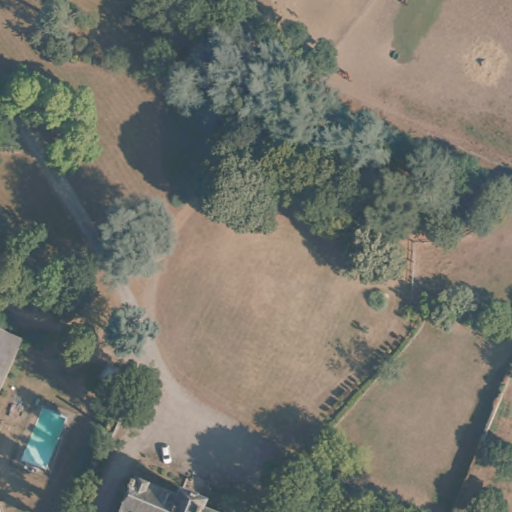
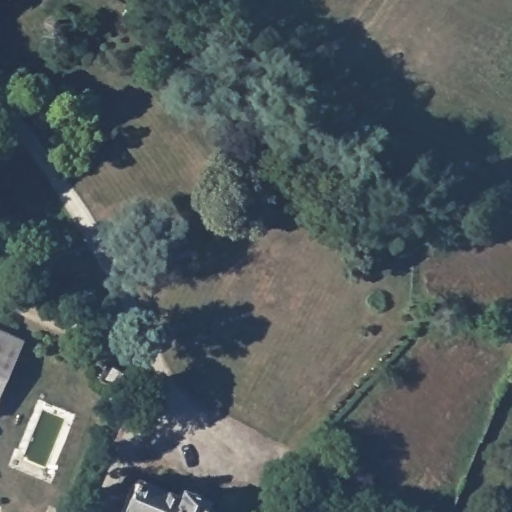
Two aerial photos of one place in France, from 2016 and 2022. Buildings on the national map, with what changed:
unchanged [(25,347),(0,402),(0,334),(20,343),(25,347)]
unchanged [(129,376),(120,390),(105,381),(112,367),(129,376)]
unchanged [(126,512),(138,483),(181,501),(184,495),(207,506),(206,511),(208,512),(126,512)]

